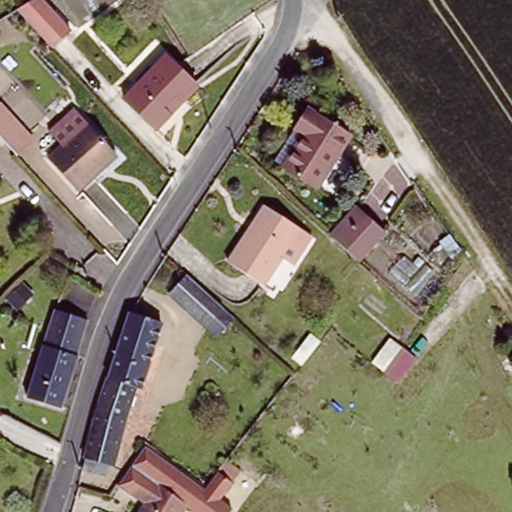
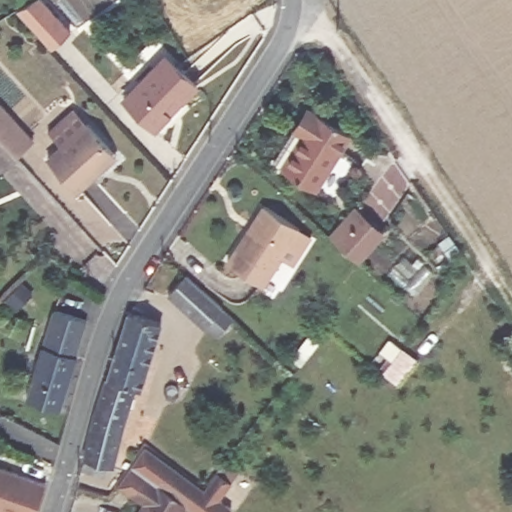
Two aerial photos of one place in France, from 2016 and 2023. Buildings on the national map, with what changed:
unchanged [(47,0),(73,29),(51,47),(15,7),(27,0),(47,0)]
unchanged [(203,87),(159,131),(128,100),(172,57),(203,87)]
unchanged [(15,151),(0,134),(0,105),(30,137),(15,151)]
unchanged [(351,137),(315,190),(275,162),(311,110),(351,137)]
unchanged [(100,180),(82,197),(53,164),(67,152),(53,137),(79,115),(92,130),(118,159),(121,162),(100,180)]
unchanged [(360,262),(337,241),(332,237),(330,235),(357,208),(370,219),(386,232),(360,262)]
unchanged [(246,280),(228,266),(242,249),(240,247),(253,229),(267,209),(270,212),(313,240),(296,266),(287,260),(272,277),(275,278),(262,292),(246,280)]
unchanged [(208,332),(172,300),(190,280),(225,312),(208,332)]
unchanged [(42,343),(45,343),(50,323),(53,308),(84,315),(80,331),(76,351),(78,351),(62,405),(28,393),(42,343)]
unchanged [(158,323),(142,392),(133,392),(113,467),(99,463),(96,475),(82,472),(102,396),(128,315),(158,323)]
unchanged [(203,487),(217,469),(235,480),(223,500),(233,507),(229,512),(194,512),(187,507),(184,512),(136,512),(142,502),(133,496),(130,497),(115,485),(144,442),(203,487)]
new [(37,512),(14,512),(0,507),(0,461),(48,479),(37,512)]

